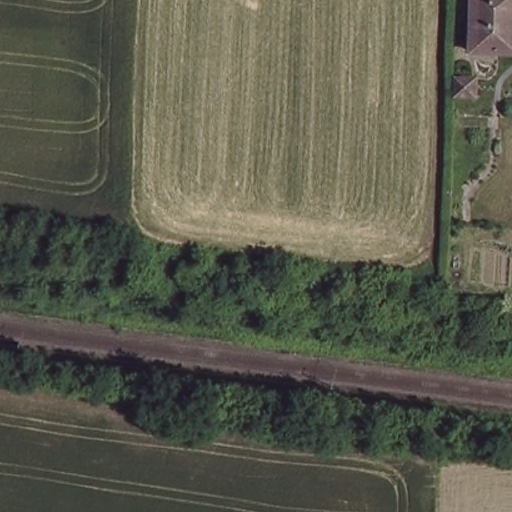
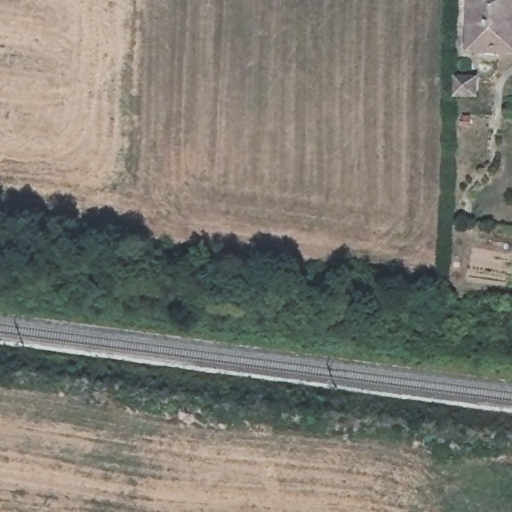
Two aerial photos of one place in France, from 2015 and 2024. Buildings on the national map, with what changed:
unchanged [(484,51),(484,31),(478,31),(479,0),(512,0),(512,52),(484,51)]

